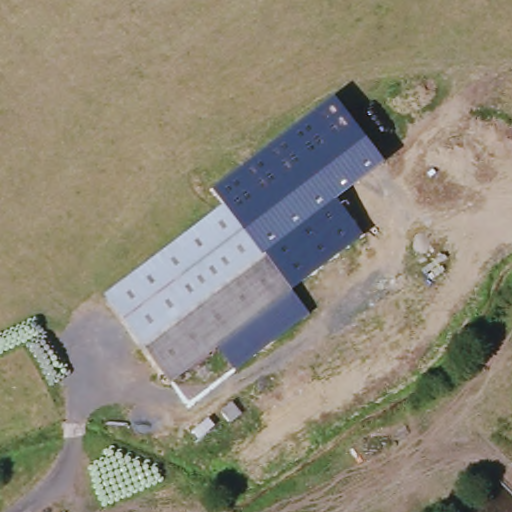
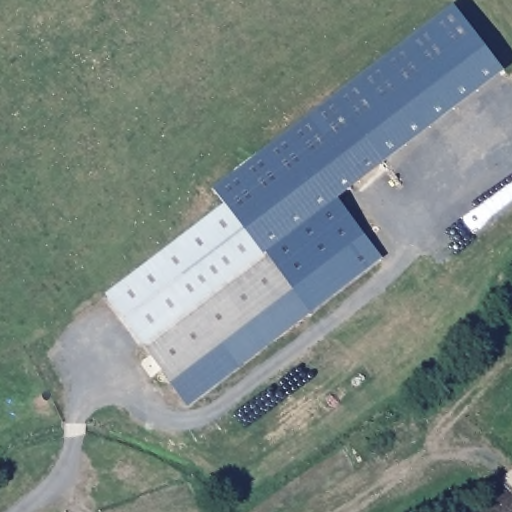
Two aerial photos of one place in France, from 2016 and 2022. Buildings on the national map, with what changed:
new [(453,8),(502,73),(383,162),(333,99),(453,8)]
unchanged [(383,162),(336,200),(361,235),(291,294),(226,207),(213,190),(333,99),(383,162)]
unchanged [(226,207),(291,294),(217,347),(171,380),(106,294),(226,207)]
unchanged [(234,370),(217,347),(291,294),(309,315),(234,370)]

